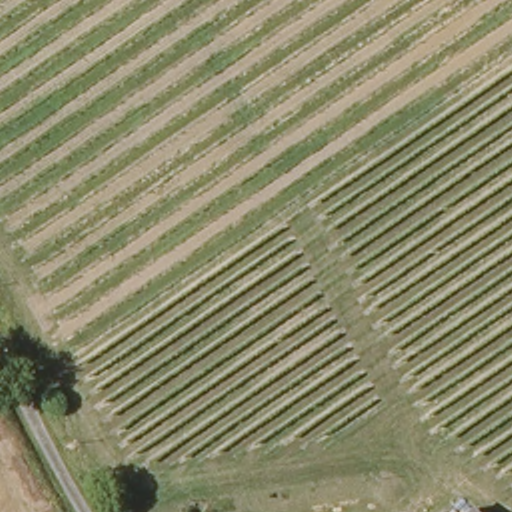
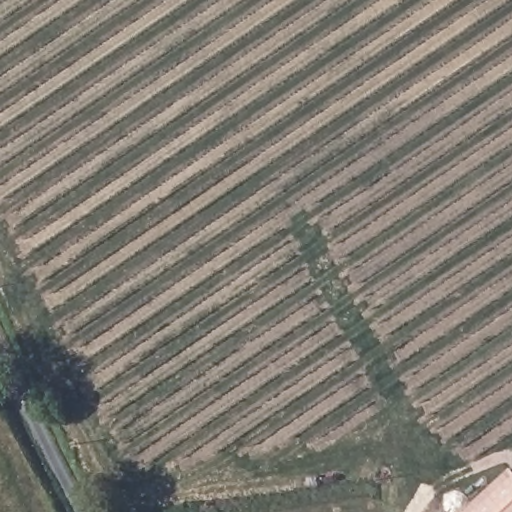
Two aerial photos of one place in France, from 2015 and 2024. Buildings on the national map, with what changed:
new [(463,512),(512,466),(512,512),(463,512)]
demolished [(472,512),(464,512),(468,508),(472,512)]

